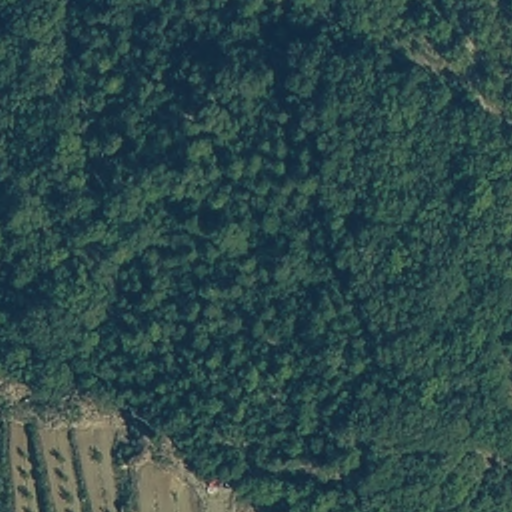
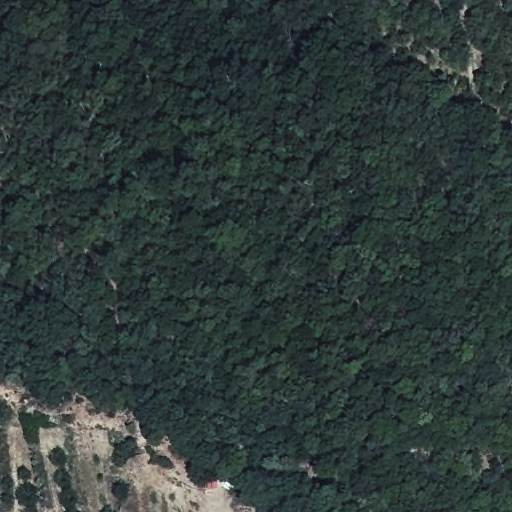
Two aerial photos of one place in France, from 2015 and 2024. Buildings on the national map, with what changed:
[]

